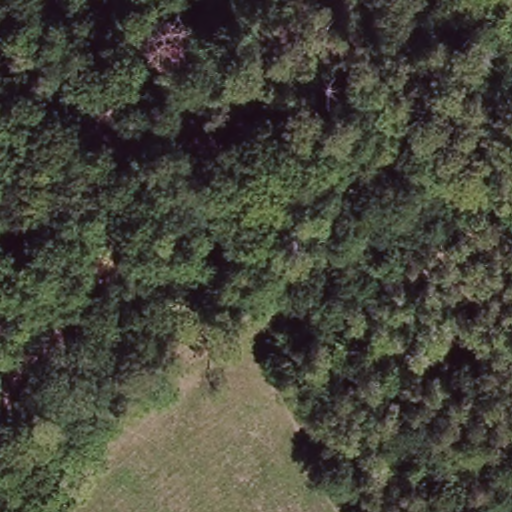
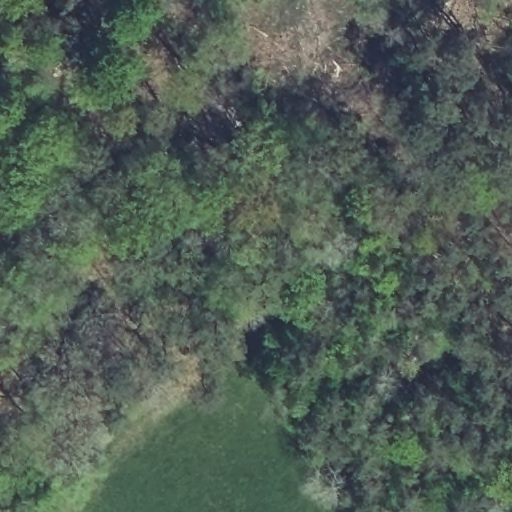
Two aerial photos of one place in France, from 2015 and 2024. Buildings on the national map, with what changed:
[]

